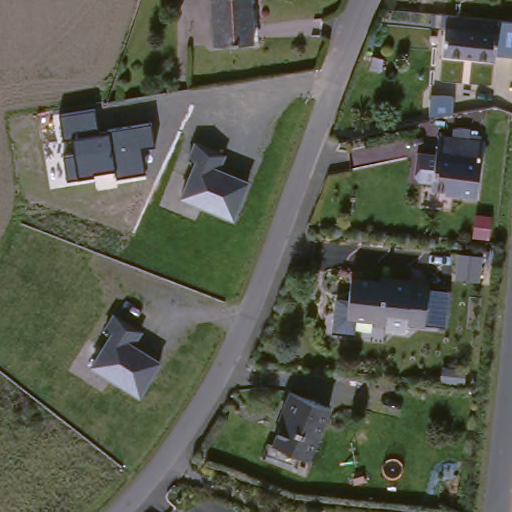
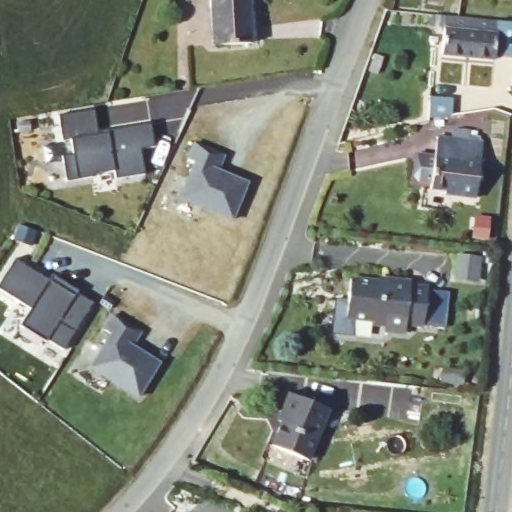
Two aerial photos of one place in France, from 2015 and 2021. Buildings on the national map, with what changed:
unchanged [(252,42),(212,45),(209,0),(250,0),(252,42)]
unchanged [(451,22),(439,21),(440,15),(451,16),(451,22)]
unchanged [(488,58),(437,54),(441,27),(463,29),(464,17),(512,22),(512,56),(489,53),(488,58)]
unchanged [(433,118),(418,121),(419,104),(433,105),(433,118)]
unchanged [(116,179),(114,170),(93,174),(93,177),(66,181),(62,155),(73,153),(71,138),(62,140),(58,114),(94,108),(98,132),(151,123),(154,145),(139,147),(145,174),(116,179)]
unchanged [(463,141),(474,142),(474,147),(478,147),(471,203),(439,199),(439,195),(425,193),(431,141),(445,143),(446,135),(453,134),(464,135),(463,141)]
unchanged [(226,161),(218,176),(247,190),(232,226),(167,198),(195,149),(226,161)]
new [(457,254),(481,257),(478,278),(454,275),(457,254)]
new [(49,279),(51,275),(78,291),(76,293),(92,303),(63,351),(47,340),(46,343),(19,326),(30,309),(0,290),(0,281),(15,258),(49,279)]
unchanged [(405,286),(405,289),(422,291),(418,330),(401,328),(399,337),(379,335),(380,326),(341,322),(345,283),(374,286),(374,282),(405,286)]
unchanged [(145,337),(136,352),(160,368),(138,402),(79,369),(109,323),(145,337)]
unchanged [(329,409),(308,459),(271,444),(285,412),(281,411),(289,392),(329,409)]

